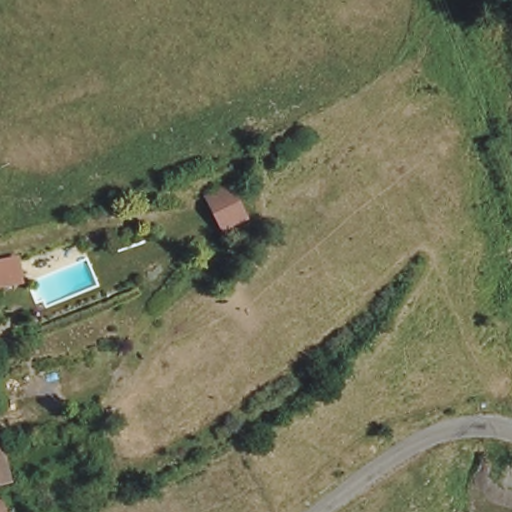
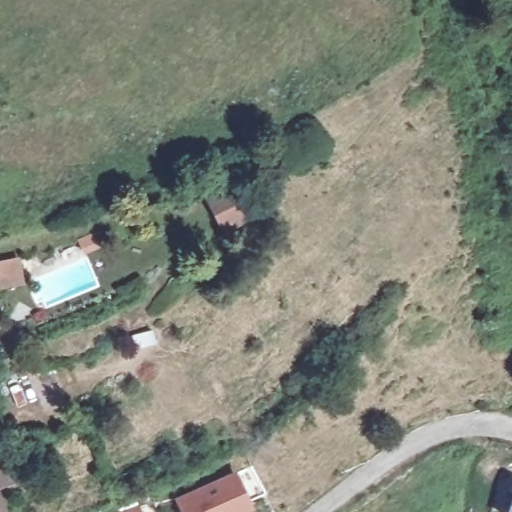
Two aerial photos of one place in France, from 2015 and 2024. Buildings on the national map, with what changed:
unchanged [(224,229),(211,197),(235,188),(240,200),(248,220),(224,229)]
unchanged [(23,263),(27,283),(0,288),(0,267),(23,263)]
new [(240,512),(180,512),(173,497),(236,468),(253,506),(240,512)]
unchanged [(3,490),(0,491),(0,472),(3,490)]
new [(512,512),(504,512),(512,490),(512,512)]
new [(139,505),(142,512),(121,512),(139,505)]
unchanged [(1,512),(0,512),(0,510),(1,512)]

